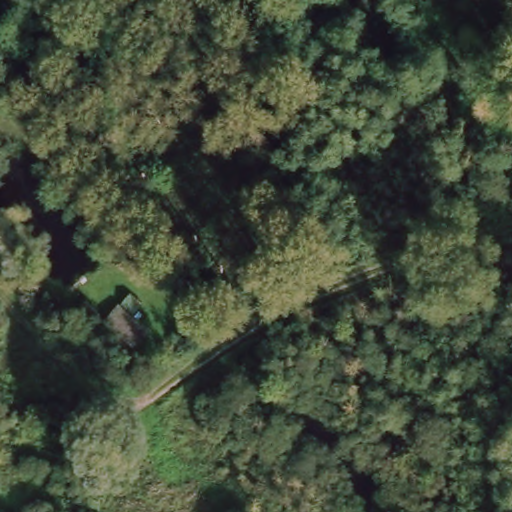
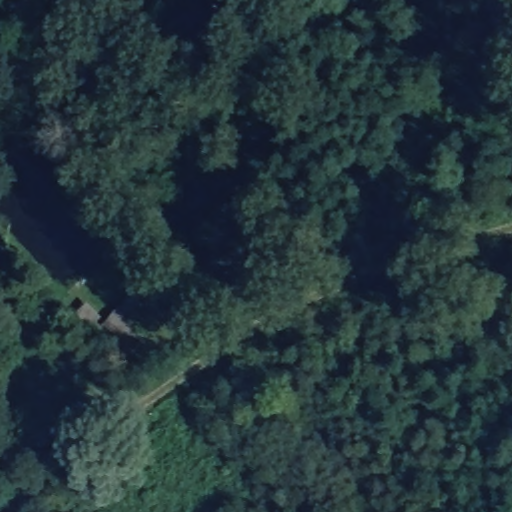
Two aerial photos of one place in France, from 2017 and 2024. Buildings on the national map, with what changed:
unchanged [(132,295),(146,310),(137,321),(151,336),(136,356),(102,328),(132,295)]

